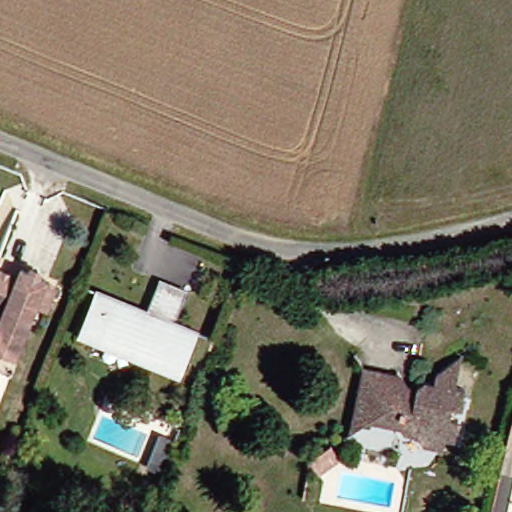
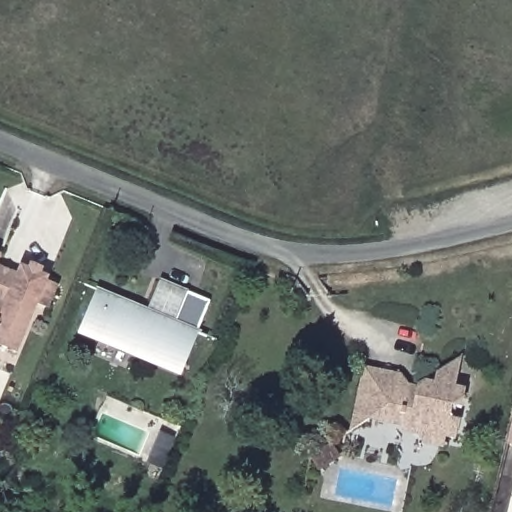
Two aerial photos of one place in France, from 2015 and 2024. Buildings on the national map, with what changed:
unchanged [(1,260),(0,261),(0,260),(1,260)]
unchanged [(7,315),(0,312),(0,275),(21,283),(24,275),(49,286),(47,293),(57,297),(47,319),(38,315),(21,353),(19,360),(0,351),(0,330),(7,315)]
unchanged [(84,339),(87,332),(106,286),(150,304),(163,275),(191,285),(180,314),(203,324),(184,369),(181,377),(84,339)]
unchanged [(470,388),(465,408),(456,407),(455,418),(463,420),(459,439),(449,437),(448,449),(426,444),(420,433),(407,432),(404,427),(376,422),(353,432),(368,368),(440,382),(442,370),(466,358),(461,387),(470,388)]
unchanged [(512,414),(512,451),(503,449),(512,414)]

